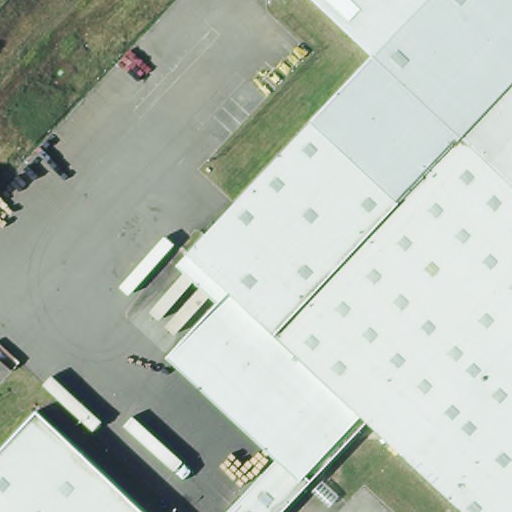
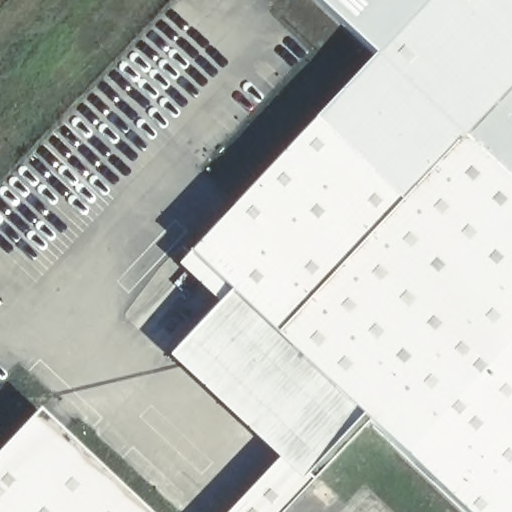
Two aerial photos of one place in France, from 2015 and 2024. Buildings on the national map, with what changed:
unchanged [(367,417),(277,512),(224,512),(276,458),(165,356),(226,290),(185,251),(375,51),(320,0),(512,0),(512,512),(468,512),(367,417)]
unchanged [(0,446),(36,408),(146,512),(0,512),(0,446)]

